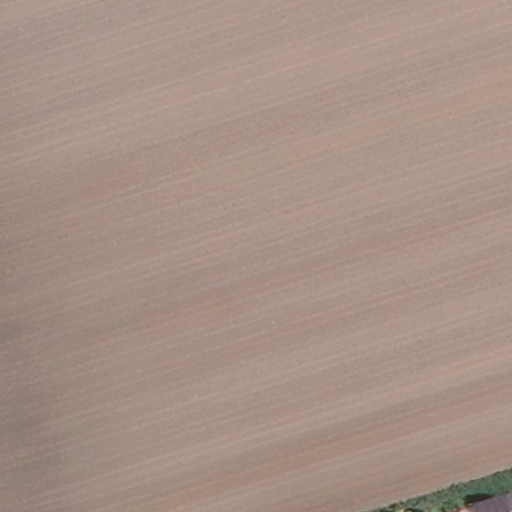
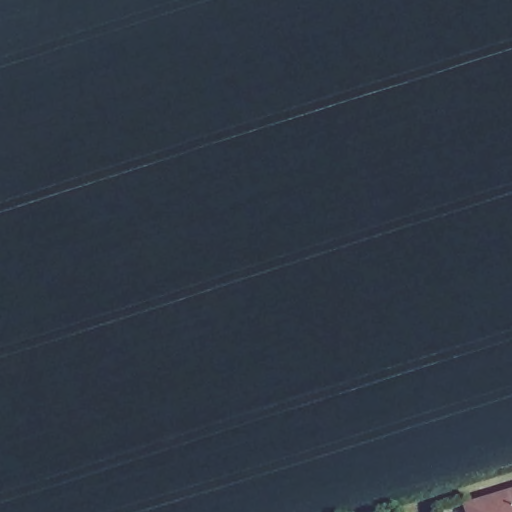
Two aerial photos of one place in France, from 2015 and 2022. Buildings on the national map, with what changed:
unchanged [(473,505),(512,492),(512,512),(476,512),(473,505)]

